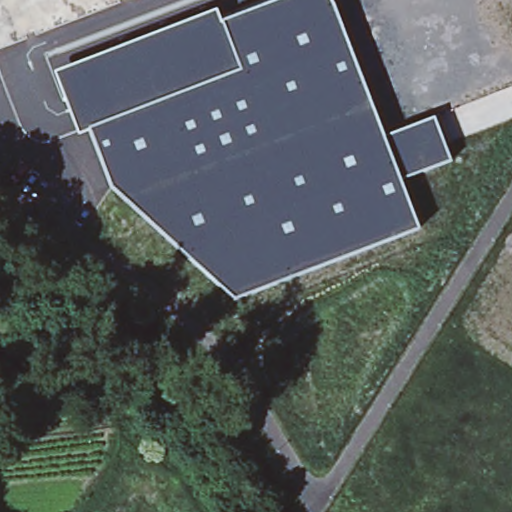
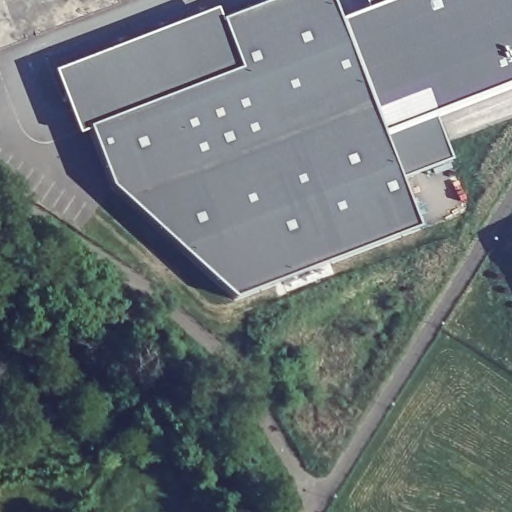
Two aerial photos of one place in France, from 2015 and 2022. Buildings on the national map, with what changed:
unchanged [(78,135),(55,72),(215,9),(221,22),(278,0),(330,0),(383,136),(435,117),(450,161),(400,180),(418,229),(234,299),(111,188),(90,130),(78,135)]
new [(339,22),(397,0),(512,0),(512,86),(435,117),(383,136),(339,22)]

